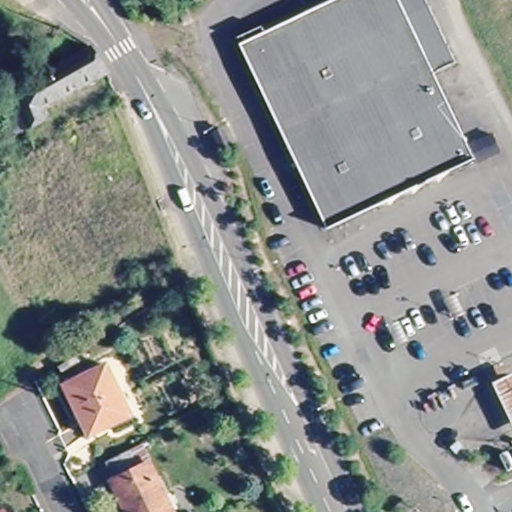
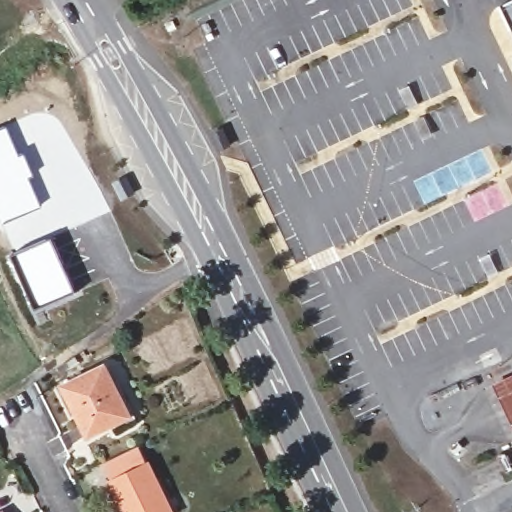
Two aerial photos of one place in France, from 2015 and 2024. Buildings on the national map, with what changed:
demolished [(324,0),(422,0),(452,62),(431,71),(472,154),(322,226),(235,41),(324,0)]
new [(512,38),(500,14),(512,9),(512,38)]
demolished [(8,95),(94,49),(108,74),(40,110),(48,130),(27,141),(8,95)]
new [(2,125),(30,175),(26,176),(39,205),(0,225),(0,127),(2,125)]
unchanged [(210,140),(211,140),(221,136),(228,151),(218,156),(210,140)]
new [(39,205),(52,197),(42,176),(44,175),(64,160),(68,163),(79,156),(108,210),(49,234),(51,236),(14,252),(0,225),(39,205)]
new [(51,236),(75,291),(38,307),(14,252),(51,236)]
unchanged [(63,385),(102,365),(125,413),(87,433),(63,385)]
unchanged [(512,369),(512,431),(482,383),(512,369)]
unchanged [(454,444),(463,451),(453,462),(445,455),(454,444)]
unchanged [(114,458),(135,448),(141,462),(121,472),(114,458)]
unchanged [(154,463),(161,477),(157,479),(173,512),(134,512),(118,479),(154,463)]

